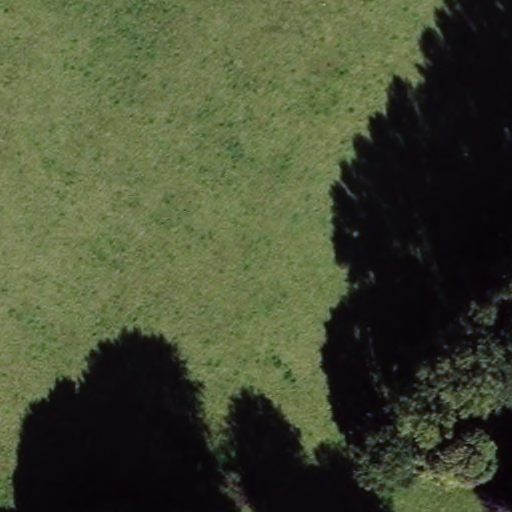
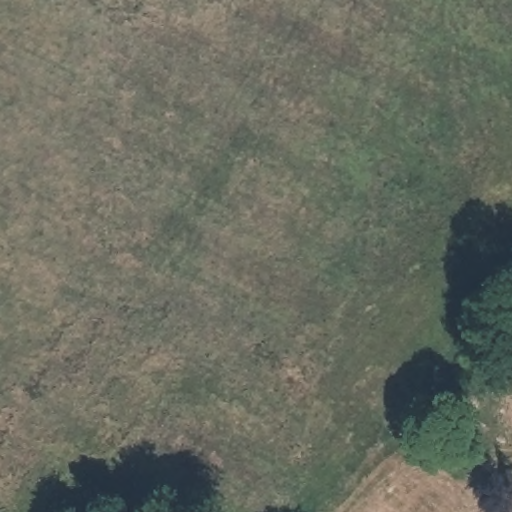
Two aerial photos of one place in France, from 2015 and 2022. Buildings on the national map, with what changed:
[]

